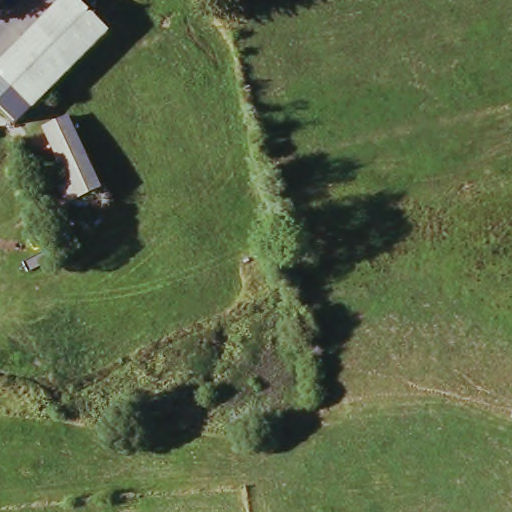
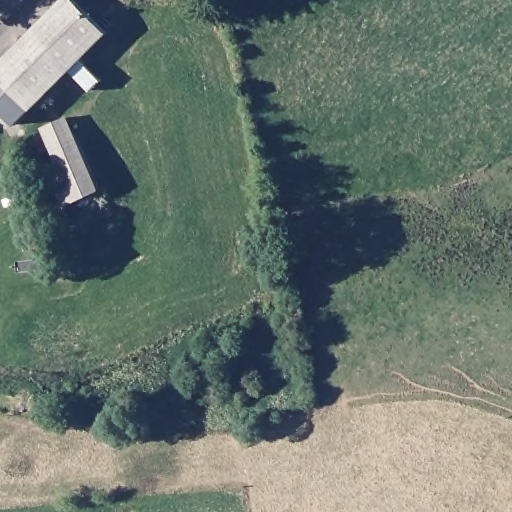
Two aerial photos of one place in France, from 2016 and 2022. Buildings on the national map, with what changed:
unchanged [(34,110),(0,77),(0,67),(69,0),(76,0),(110,35),(34,110)]
unchanged [(107,195),(72,211),(62,192),(73,188),(50,134),(75,123),(107,195)]

